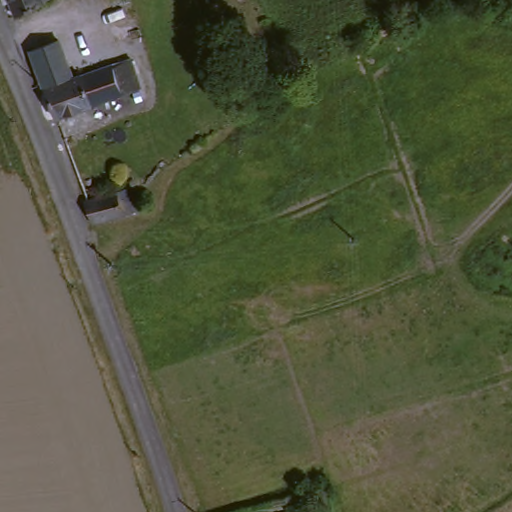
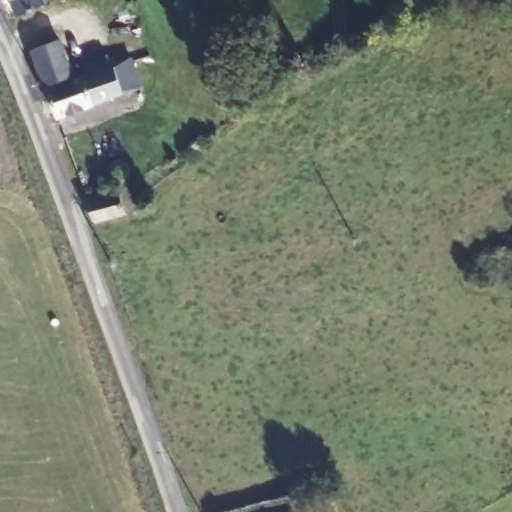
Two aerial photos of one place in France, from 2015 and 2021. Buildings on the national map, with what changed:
unchanged [(20,0),(49,0),(24,11),(20,0)]
unchanged [(34,51),(68,40),(81,74),(48,87),(34,51)]
unchanged [(62,118),(48,87),(81,74),(136,55),(148,88),(62,118)]
unchanged [(124,187),(131,211),(92,227),(82,201),(124,187)]
unchanged [(296,508),(298,512),(287,512),(296,508)]

